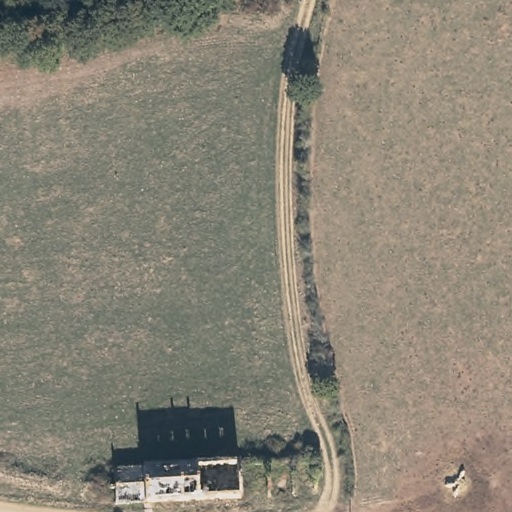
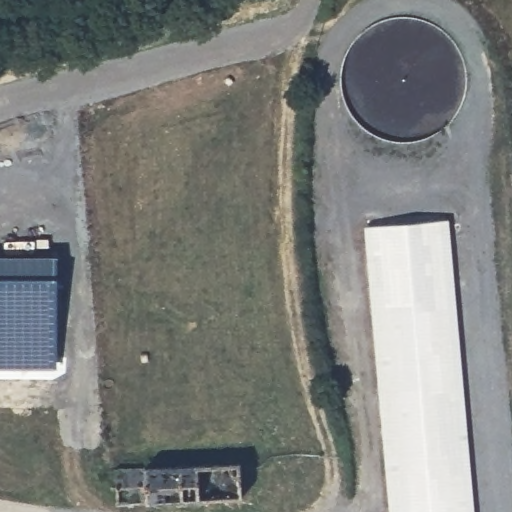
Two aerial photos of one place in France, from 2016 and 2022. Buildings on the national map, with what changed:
new [(447,219),(473,512),(387,512),(363,226),(447,219)]
unchanged [(0,369),(0,258),(56,257),(57,368),(0,369)]

